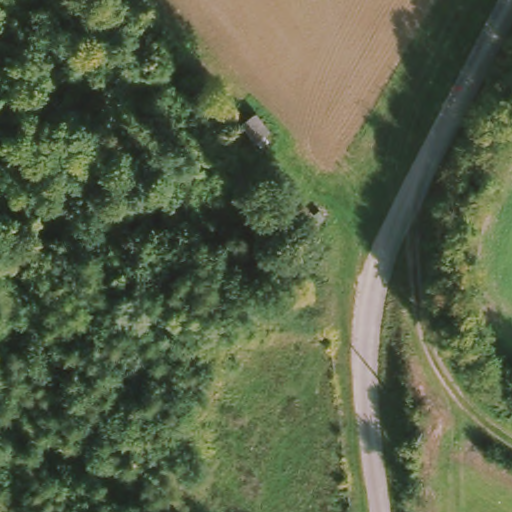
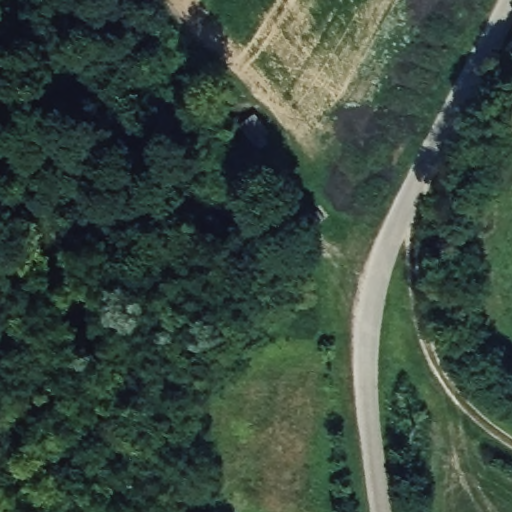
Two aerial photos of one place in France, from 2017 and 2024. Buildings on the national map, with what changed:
unchanged [(240,126),(255,115),(269,130),(265,135),(269,141),(259,151),(240,126)]

